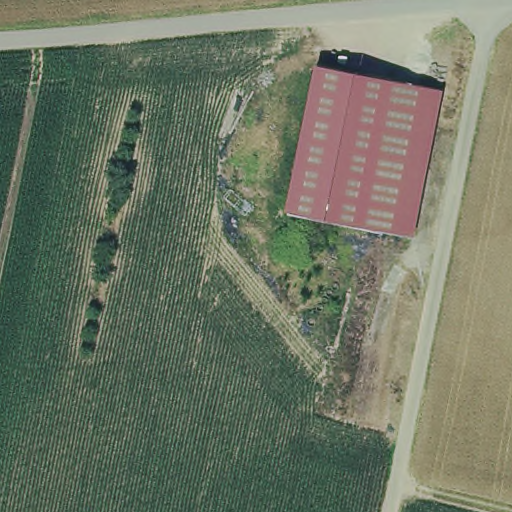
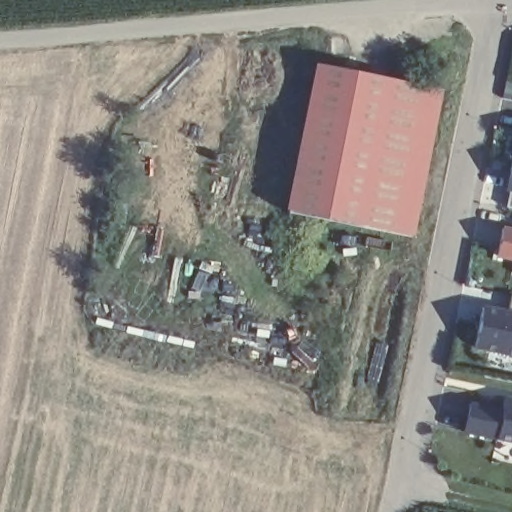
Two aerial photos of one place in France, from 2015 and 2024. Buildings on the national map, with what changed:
unchanged [(288,209),(318,63),(439,89),(409,234),(288,209)]
new [(512,207),(506,205),(509,189),(506,188),(512,155),(512,207)]
new [(502,227),(512,229),(512,262),(496,258),(502,227)]
new [(512,294),(512,312),(508,311),(511,294),(512,294)]
new [(512,312),(512,353),(474,345),(483,306),(512,312)]
new [(469,402),(502,408),(504,397),(512,399),(512,444),(464,435),(469,402)]

